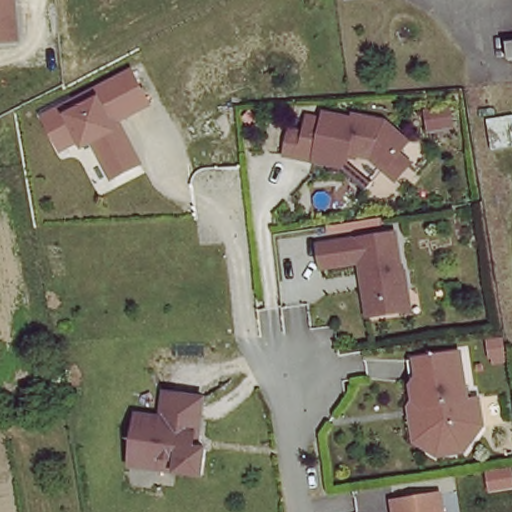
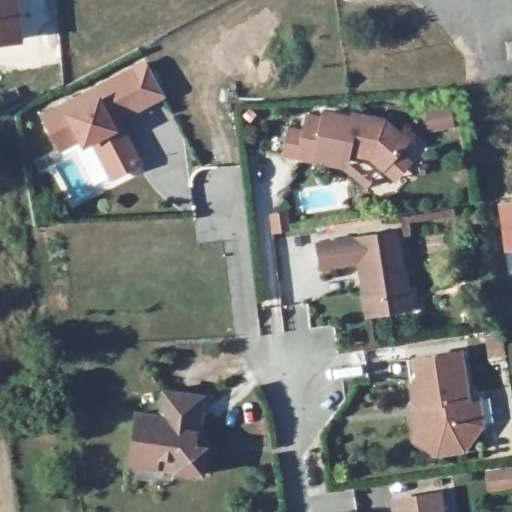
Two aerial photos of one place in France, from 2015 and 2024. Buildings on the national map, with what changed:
unchanged [(20,41),(0,43),(0,0),(17,0),(20,41)]
unchanged [(345,2),(345,0),(358,0),(345,2)]
demolished [(493,0),(512,0),(512,5),(494,6),(493,0)]
unchanged [(512,65),(508,65),(507,46),(512,46),(512,65)]
unchanged [(141,157),(113,171),(95,135),(85,139),(81,132),(62,142),(45,110),(134,65),(150,98),(118,114),(121,120),(141,157)]
unchanged [(431,137),(425,112),(460,105),(465,124),(431,137)]
unchanged [(399,176),(387,165),(373,154),(351,150),(350,160),(349,164),(318,159),(302,155),(287,153),(291,128),(306,130),(310,114),(325,117),(326,110),(355,115),(355,111),(387,117),(411,137),(401,149),(413,159),(399,176)]
new [(512,276),(507,276),(496,201),(512,199),(512,276)]
unchanged [(389,311),(368,315),(360,260),(322,266),(318,244),(395,232),(401,270),(404,270),(407,288),(410,307),(389,311)]
unchanged [(412,402),(417,395),(415,381),(411,355),(419,355),(465,347),(472,395),(482,394),(486,420),(477,433),(467,446),(440,450),(433,446),(418,437),(412,402)]
unchanged [(136,416),(161,417),(163,392),(203,397),(200,433),(196,433),(195,446),(206,447),(203,474),(177,471),(178,459),(158,457),(157,469),(131,466),(136,416)]
unchanged [(441,488),(445,512),(396,512),(393,496),(441,488)]

